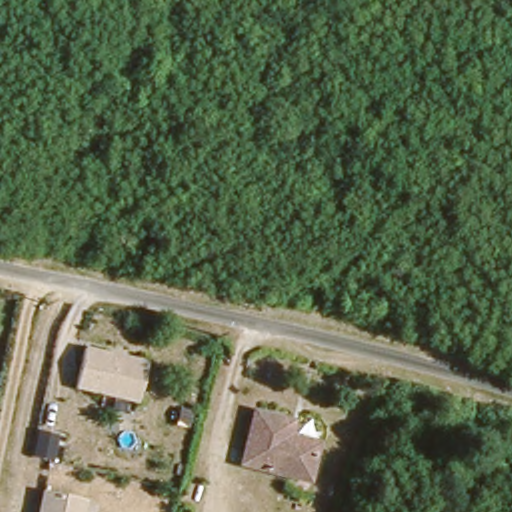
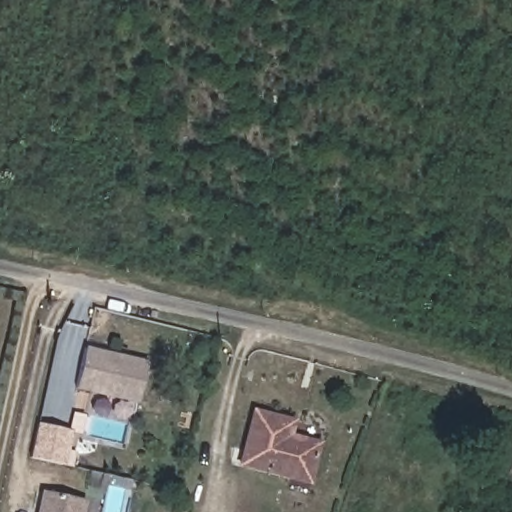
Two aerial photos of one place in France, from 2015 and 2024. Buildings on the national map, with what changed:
unchanged [(75,390),(85,348),(148,361),(139,403),(75,390)]
unchanged [(289,417),(285,432),(317,440),(307,480),(240,462),(253,408),(289,417)]
new [(65,466),(29,458),(36,423),(73,431),(65,466)]
unchanged [(36,512),(40,490),(85,501),(83,512),(36,512)]

